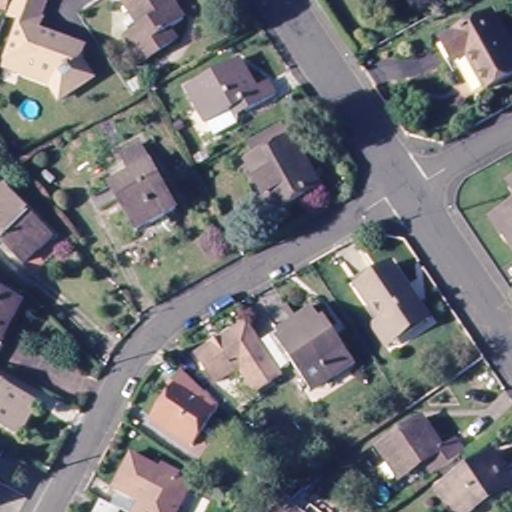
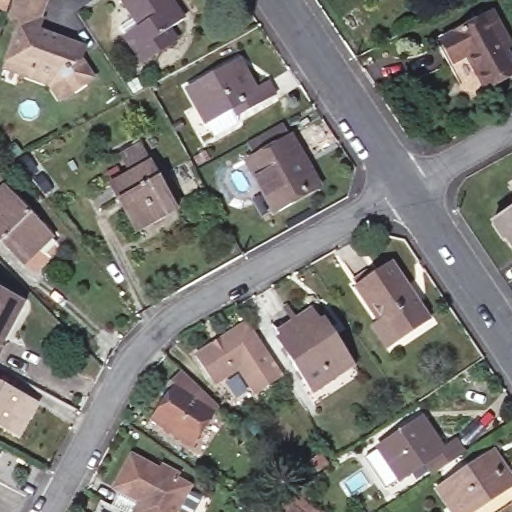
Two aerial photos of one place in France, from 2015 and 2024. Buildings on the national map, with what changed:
unchanged [(0,7),(0,0),(14,0),(11,11),(0,7)]
unchanged [(12,20),(18,0),(51,0),(40,32),(79,47),(86,57),(86,62),(97,81),(68,99),(61,103),(51,87),(10,72),(12,64),(26,26),(12,20)]
unchanged [(181,37),(147,59),(129,32),(142,23),(128,0),(176,0),(187,17),(174,26),(181,37)]
unchanged [(437,46),(442,44),(492,15),(504,36),(511,49),(505,54),(512,67),(512,76),(486,92),(467,59),(455,66),(450,68),(437,46)]
unchanged [(0,37),(0,29),(2,30),(0,37)]
unchanged [(252,121),(219,139),(216,132),(209,122),(207,123),(187,87),(239,59),(255,87),(269,79),(277,94),(247,111),(248,114),(252,121)]
unchanged [(133,92),(129,82),(138,77),(143,86),(133,92)]
unchanged [(285,223),(255,176),(261,173),(251,157),(289,135),(327,197),(285,223)]
unchanged [(141,233),(115,188),(137,177),(127,159),(147,150),(182,210),(141,233)]
unchanged [(4,241),(0,244),(0,208),(15,196),(50,233),(60,244),(50,253),(31,270),(4,241)]
unchanged [(490,217),(496,213),(512,202),(512,243),(503,232),(501,234),(490,217)]
unchanged [(396,347),(381,324),(388,320),(368,287),(363,280),(380,270),(385,277),(397,268),(430,317),(433,323),(396,347)]
unchanged [(2,345),(6,347),(0,360),(0,292),(22,304),(2,345)]
unchanged [(291,366),(297,362),(282,337),(277,332),(295,322),(311,312),(326,336),(333,332),(338,341),(354,364),(331,378),(308,392),(304,386),(291,366)]
unchanged [(282,377),(252,395),(238,373),(216,387),(197,357),(248,325),(270,359),(282,377)]
unchanged [(198,453),(157,425),(185,385),(182,382),(186,375),(225,414),(198,453)]
unchanged [(22,436),(0,424),(0,385),(37,406),(22,436)]
unchanged [(390,470),(396,466),(383,448),(427,420),(448,449),(462,441),(473,458),(441,480),(430,463),(405,480),(398,483),(390,470)]
unchanged [(136,508),(110,493),(128,458),(156,474),(160,467),(175,477),(173,482),(188,490),(176,512),(134,512),(136,508)]
unchanged [(482,512),(460,512),(447,492),(498,458),(512,479),(512,492),(482,512)]
unchanged [(102,498),(124,510),(122,512),(94,512),(102,498)]
unchanged [(305,512),(276,512),(290,499),(305,512)]

